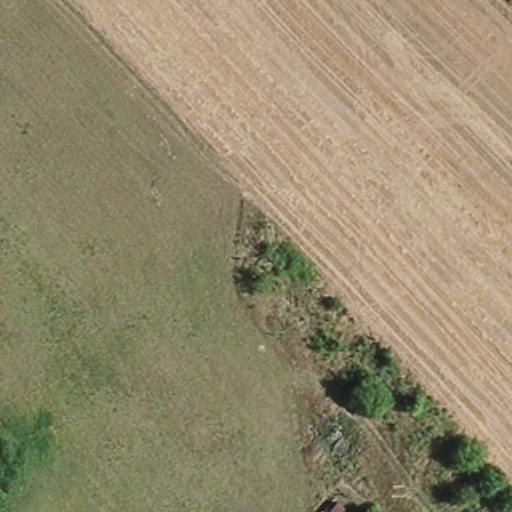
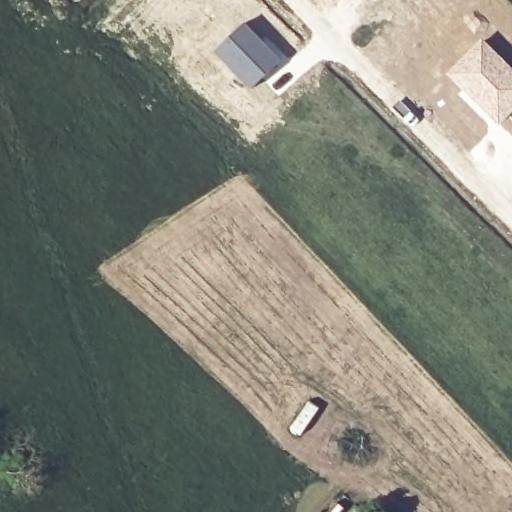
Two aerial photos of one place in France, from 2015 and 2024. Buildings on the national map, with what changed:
new [(244,22),(281,60),(250,89),(213,52),(244,22)]
new [(512,67),(512,114),(500,125),(446,74),(482,38),(512,67)]
new [(512,137),(500,125),(512,114),(512,137)]

